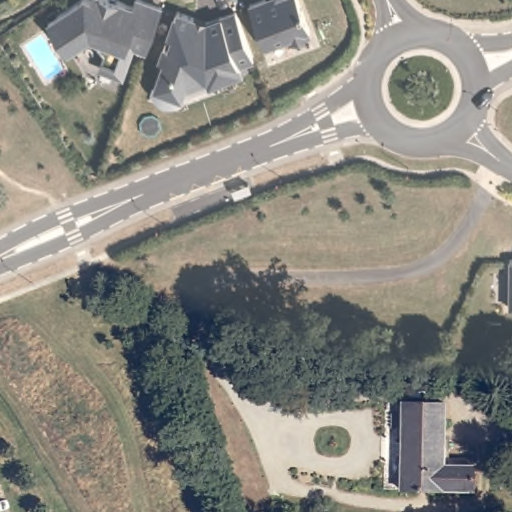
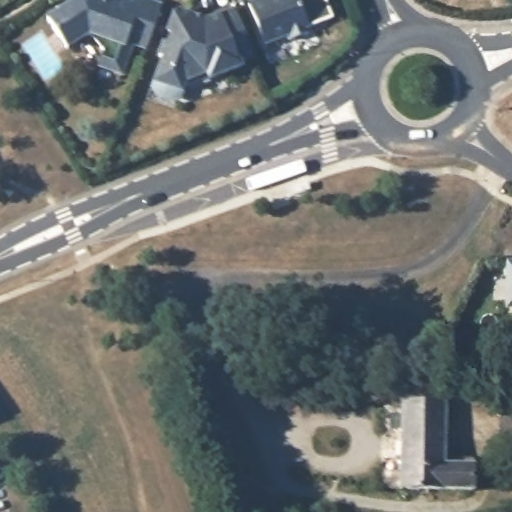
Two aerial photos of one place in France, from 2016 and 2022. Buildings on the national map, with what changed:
unchanged [(132,44),(122,75),(99,66),(105,53),(92,34),(70,50),(49,21),(79,0),(117,0),(133,5),(135,0),(142,0),(162,7),(147,50),(132,44)]
unchanged [(266,0),(266,1),(269,0),(298,0),(309,28),(307,29),(310,33),(289,41),(287,36),(265,45),(249,3),(258,0),(266,0)]
unchanged [(239,61),(241,65),(210,77),(206,67),(187,74),(179,98),(153,89),(164,57),(160,55),(165,42),(173,45),(177,35),(168,32),(176,9),(193,15),(191,22),(203,27),(206,20),(235,9),(246,37),(250,49),(252,55),(239,61)]
unchanged [(509,260),(512,260),(512,307),(508,307),(509,260)]
unchanged [(403,396),(444,397),(443,459),(473,459),(473,485),(401,483),(403,396)]
unchanged [(512,413),(512,444),(498,444),(499,413),(512,413)]

